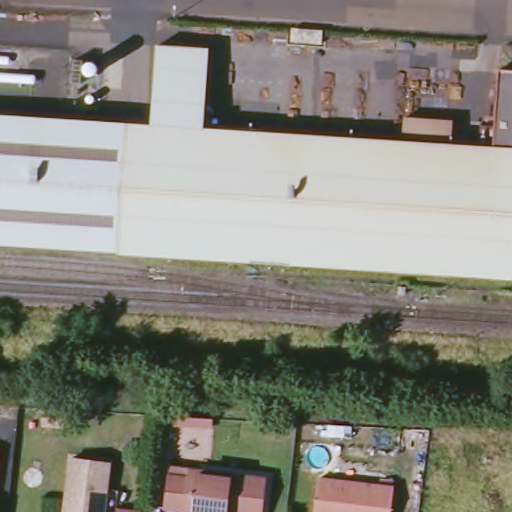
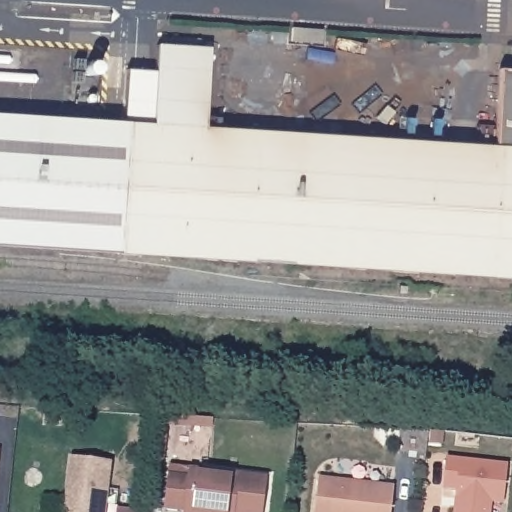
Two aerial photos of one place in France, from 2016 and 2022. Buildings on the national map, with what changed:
unchanged [(324,38),(323,52),(294,50),(294,36),(324,38)]
unchanged [(155,129),(160,51),(212,54),(207,132),(400,145),(402,122),(450,125),(449,148),(475,149),(477,130),(493,131),(497,75),(512,76),(512,280),(82,252),(0,247),(0,119),(13,120),(155,129)]
new [(445,489),(446,457),(507,464),(504,505),(490,504),(490,512),(455,512),(456,490),(445,489)]
unchanged [(107,463),(102,512),(67,512),(72,460),(107,463)]
unchanged [(244,512),(225,510),(225,512),(196,512),(187,511),(188,506),(179,504),(170,503),(172,477),(182,477),(192,478),(193,468),(222,472),(270,478),(266,512),(244,512)]
unchanged [(394,487),(391,512),(315,512),(318,481),(394,487)]

